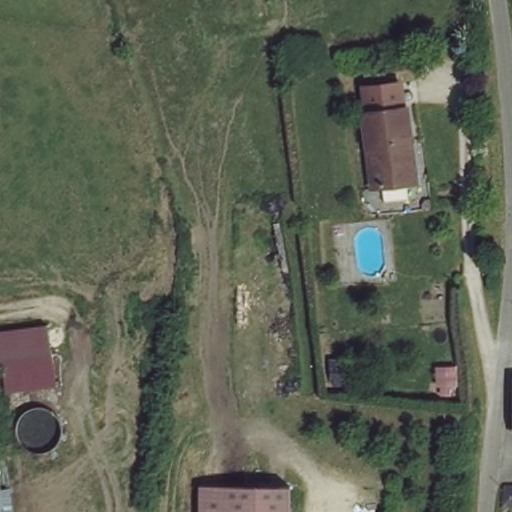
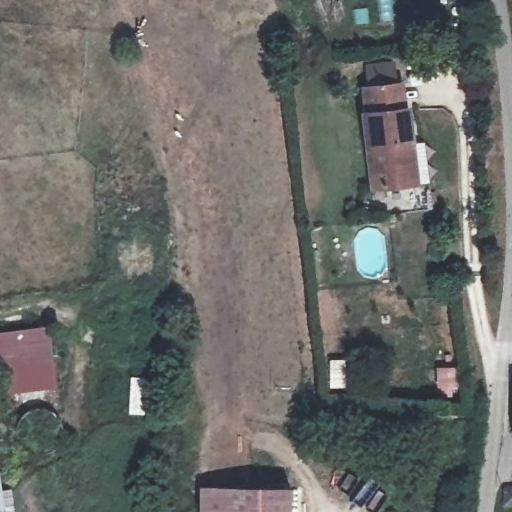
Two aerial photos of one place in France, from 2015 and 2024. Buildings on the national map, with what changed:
unchanged [(412,183),(375,189),(365,112),(411,105),(417,145),(422,181),(412,183)]
unchanged [(57,384),(12,390),(7,358),(0,359),(0,330),(48,323),(57,384)]
unchanged [(10,484),(15,512),(0,512),(0,477),(2,485),(10,484)]
unchanged [(199,485),(290,484),(290,512),(199,512),(199,485)]
unchanged [(512,486),(512,506),(505,505),(507,486),(512,486)]

